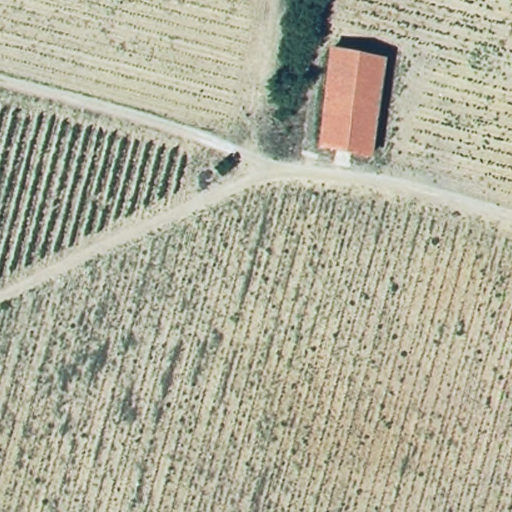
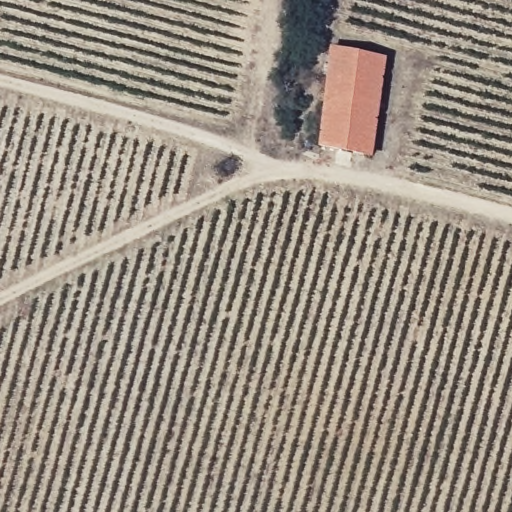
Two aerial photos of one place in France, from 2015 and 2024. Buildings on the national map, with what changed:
unchanged [(325,51),(378,59),(365,160),(313,151),(325,51)]

